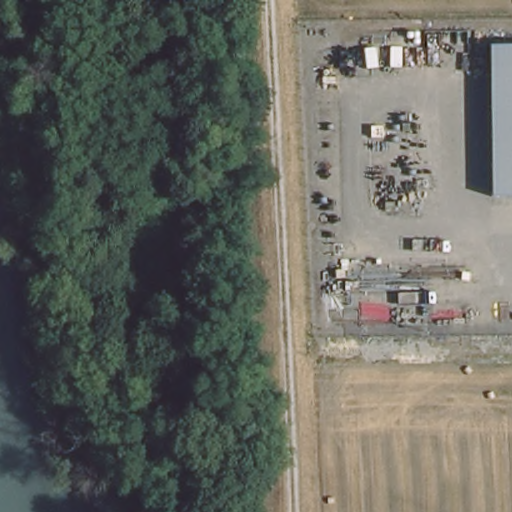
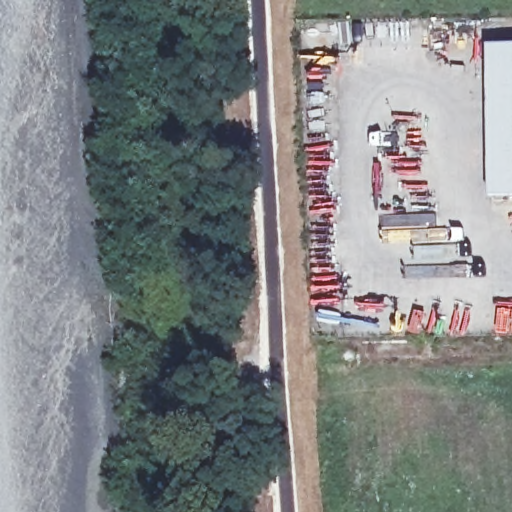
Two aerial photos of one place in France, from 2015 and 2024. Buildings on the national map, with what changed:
unchanged [(512,197),(490,197),(489,48),(512,48),(512,197)]

